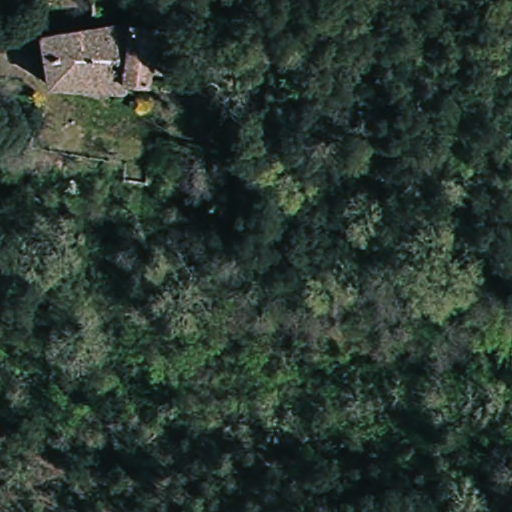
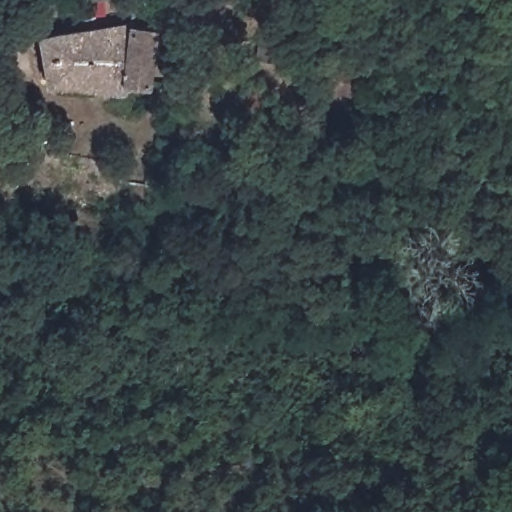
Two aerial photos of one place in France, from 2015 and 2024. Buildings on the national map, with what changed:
unchanged [(133,25),(153,34),(147,85),(127,85),(127,94),(47,83),(41,32),(133,25)]

